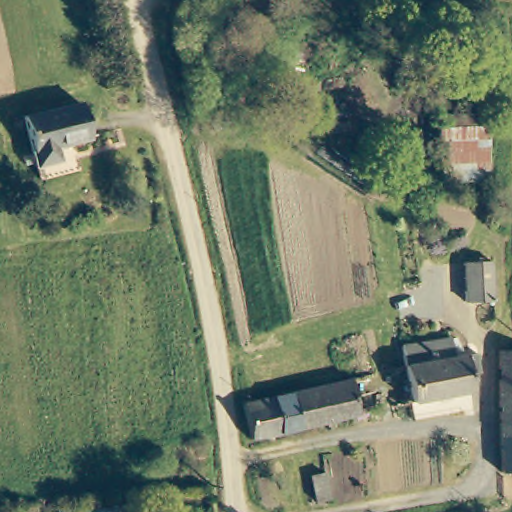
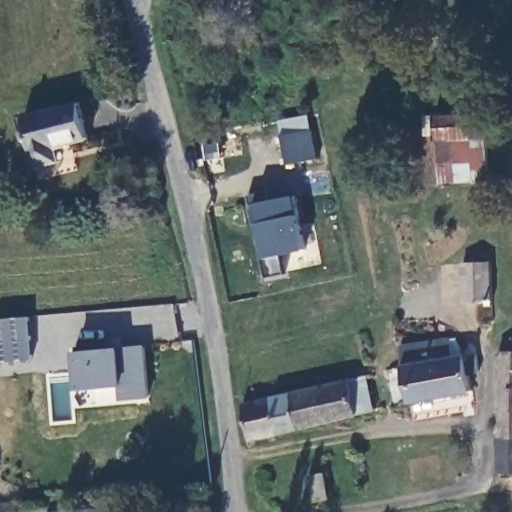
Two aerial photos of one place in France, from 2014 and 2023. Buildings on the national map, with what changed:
unchanged [(23,115),(78,100),(86,139),(66,144),(71,164),(38,173),(23,115)]
unchanged [(488,182),(440,185),(437,144),(435,144),(434,118),(483,115),(488,182)]
new [(257,204),(296,196),(307,248),(267,257),(257,204)]
unchanged [(462,298),(461,257),(492,257),(493,297),(462,298)]
new [(0,319),(30,316),(34,360),(0,363),(0,319)]
unchanged [(448,336),(452,354),(481,348),(478,368),(466,370),(470,389),(409,405),(397,347),(448,336)]
unchanged [(495,439),(494,354),(511,354),(511,342),(512,342),(512,438),(495,439)]
new [(122,401),(121,387),(78,391),(74,353),(121,348),(146,345),(153,398),(122,401)]
unchanged [(267,394),(288,389),(348,375),(355,412),(295,427),(274,432),(250,437),(246,438),(241,405),(268,399),(267,394)]
unchanged [(512,438),(512,474),(495,474),(495,439),(512,438)]
unchanged [(316,474),(321,505),(304,508),(298,477),(316,474)]
unchanged [(103,508),(103,512),(57,512),(103,508)]

